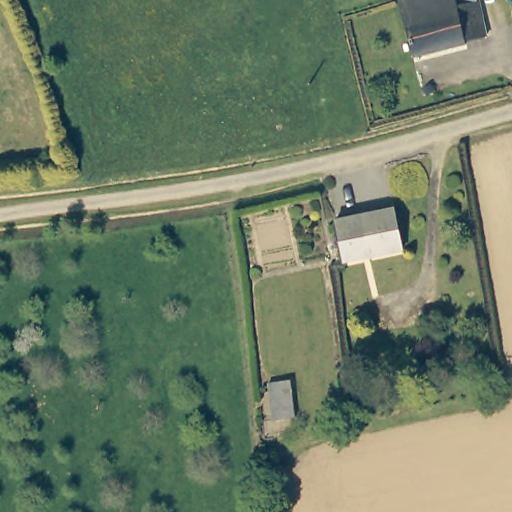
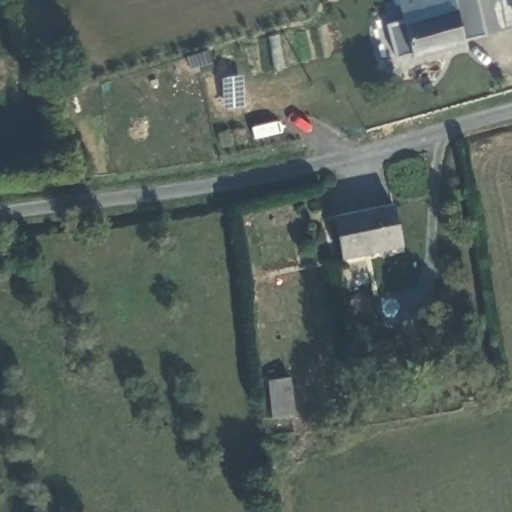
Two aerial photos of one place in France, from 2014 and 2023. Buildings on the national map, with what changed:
unchanged [(487,32),(468,36),(466,41),(418,55),(404,0),(480,0),(487,32)]
unchanged [(401,250),(342,263),(333,222),(393,210),(401,250)]
unchanged [(293,417),(272,421),(270,385),(290,382),(293,417)]

